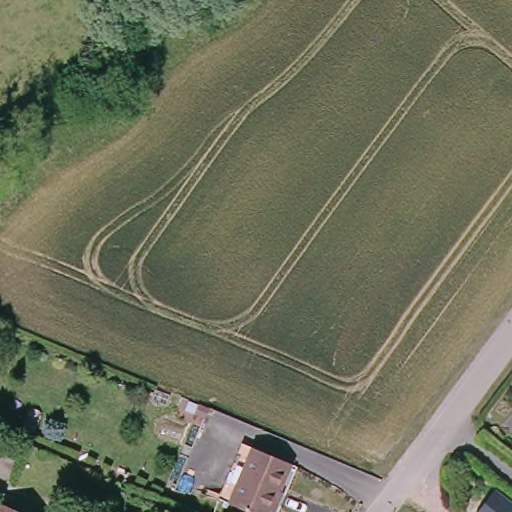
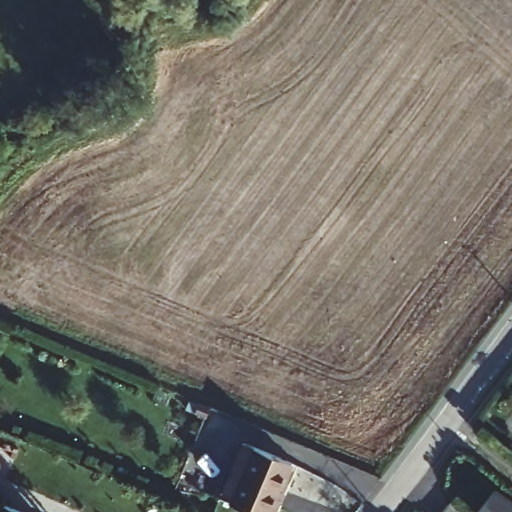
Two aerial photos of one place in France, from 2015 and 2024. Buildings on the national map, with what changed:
unchanged [(287,459),(263,512),(255,512),(225,499),(249,443),(287,459)]
unchanged [(495,489),(512,502),(512,512),(478,512),(495,489)]
unchanged [(3,507),(16,512),(1,512),(3,507)]

